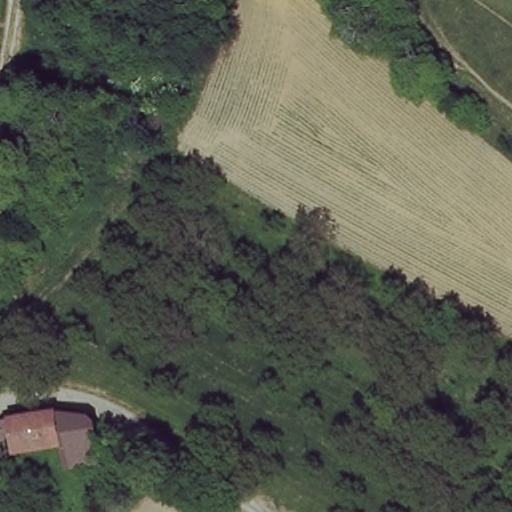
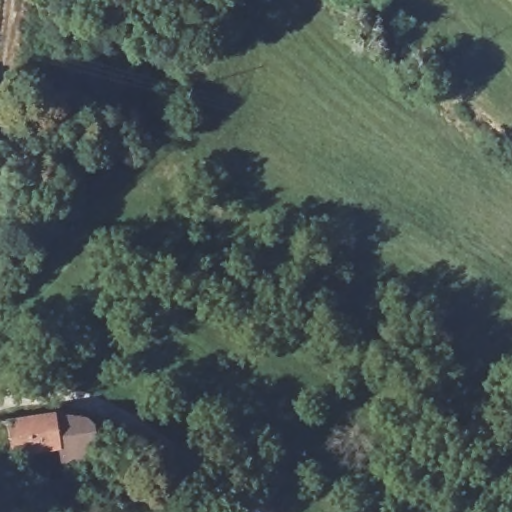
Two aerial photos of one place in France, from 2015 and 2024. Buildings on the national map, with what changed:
unchanged [(63,471),(56,448),(0,457),(0,424),(85,410),(96,464),(63,471)]

